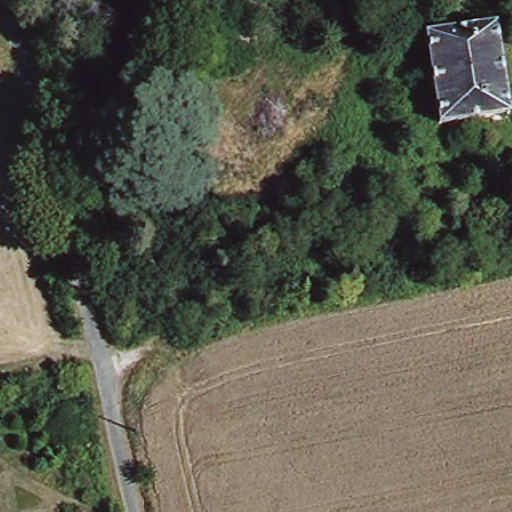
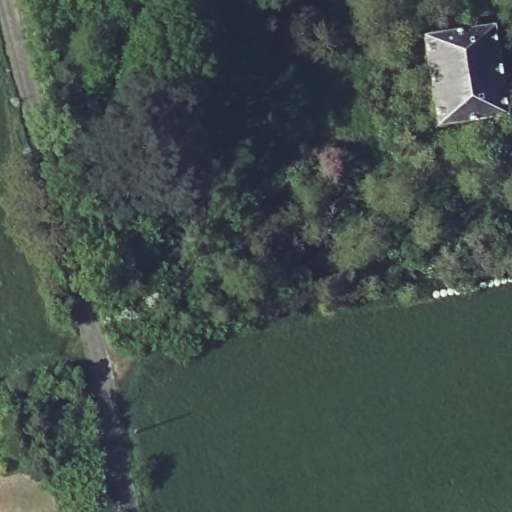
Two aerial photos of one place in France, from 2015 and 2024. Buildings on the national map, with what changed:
unchanged [(503,105),(436,119),(419,36),(486,22),(503,105)]

